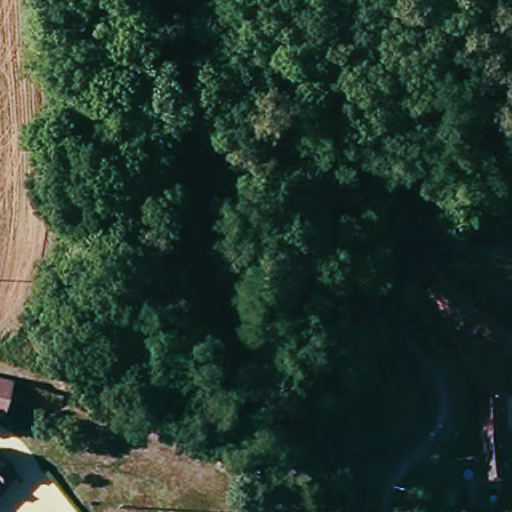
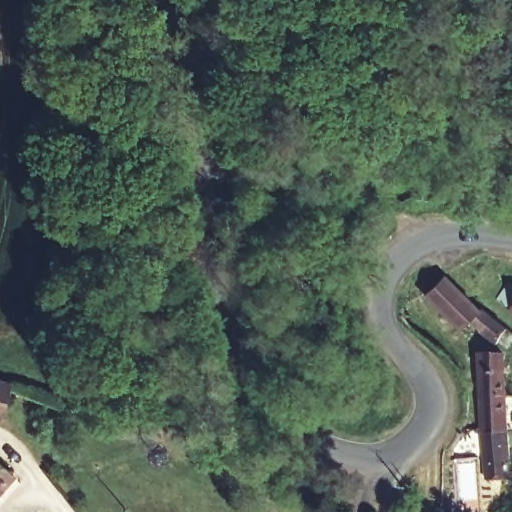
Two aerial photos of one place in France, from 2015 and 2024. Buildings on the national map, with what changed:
unchanged [(452,212),(454,197),(486,201),(485,216),(452,212)]
unchanged [(486,312),(512,331),(512,347),(506,342),(501,347),(486,333),(486,329),(476,320),(464,331),(429,296),(448,277),(486,312)]
unchanged [(483,356),(502,355),(501,361),(510,361),(512,401),(512,432),(486,432),(483,356)]
unchanged [(0,379),(14,382),(5,417),(0,415),(0,379)]
unchanged [(491,478),(486,432),(512,432),(512,478),(491,478)]
unchanged [(0,460),(16,473),(0,493),(0,460)]

